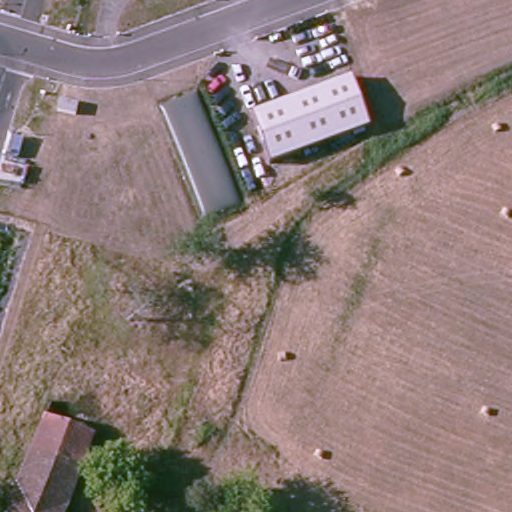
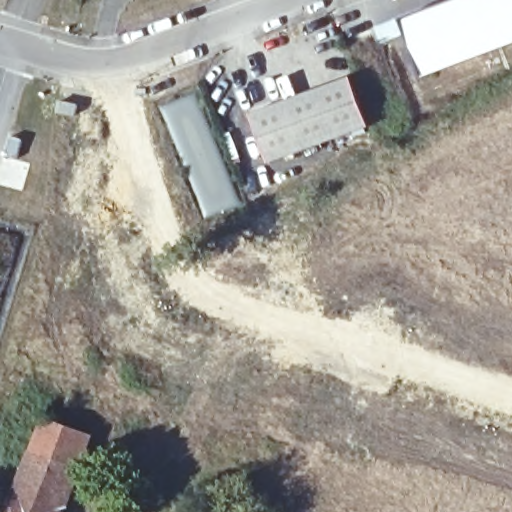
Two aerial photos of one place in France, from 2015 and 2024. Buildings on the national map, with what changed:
new [(512,0),(512,45),(426,78),(402,17),(450,0),(512,0)]
unchanged [(271,164),(252,112),(350,76),(370,127),(271,164)]
unchanged [(79,99),(60,95),(63,83),(81,87),(79,99)]
new [(73,117),(55,113),(57,102),(75,106),(73,117)]
unchanged [(50,406),(100,424),(91,449),(41,431),(50,406)]
unchanged [(67,512),(22,512),(13,508),(41,431),(91,449),(67,512)]

